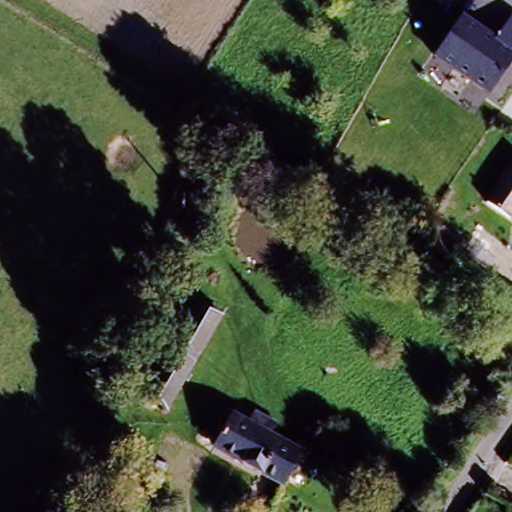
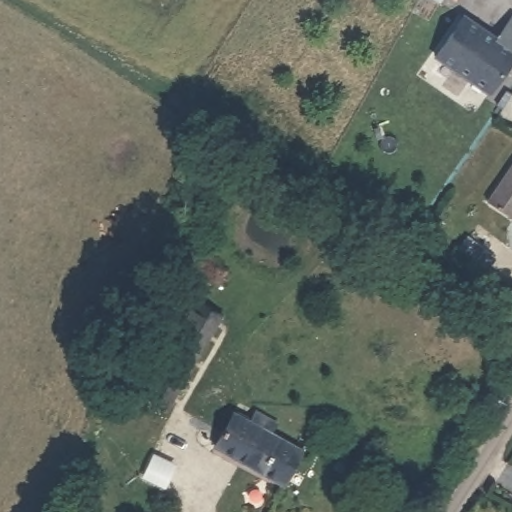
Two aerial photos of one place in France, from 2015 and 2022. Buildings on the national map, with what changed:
unchanged [(432,58),(463,15),(495,37),(512,14),(512,61),(486,97),(432,58)]
unchanged [(512,218),(510,220),(485,203),(510,161),(512,163),(512,218)]
unchanged [(219,317),(166,423),(136,409),(187,304),(219,317)]
unchanged [(303,456),(284,489),(215,453),(236,414),(303,456)]
unchanged [(100,508),(98,512),(63,512),(71,495),(100,508)]

